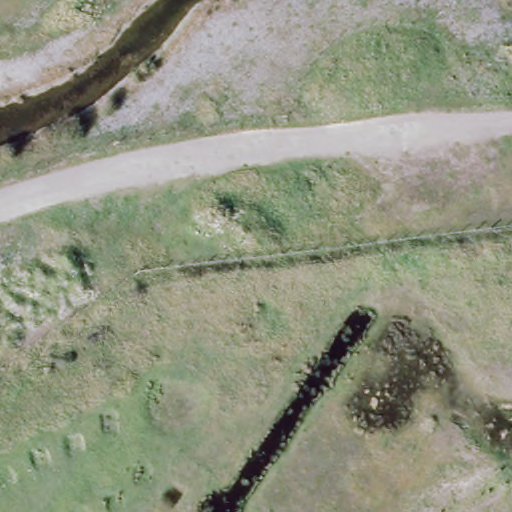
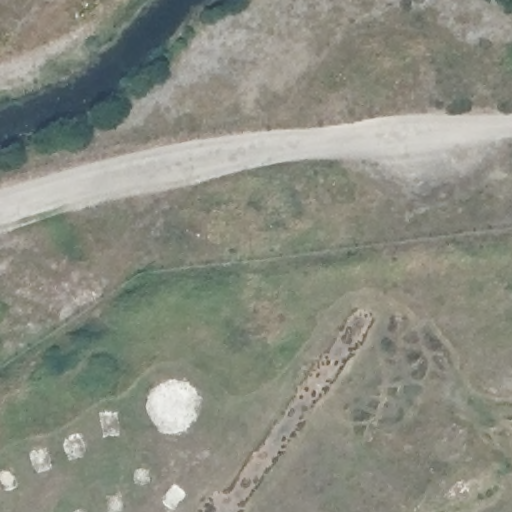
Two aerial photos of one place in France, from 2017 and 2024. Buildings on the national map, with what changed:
unchanged [(462,7),(470,0),(512,0),(512,8),(485,30),(462,7)]

